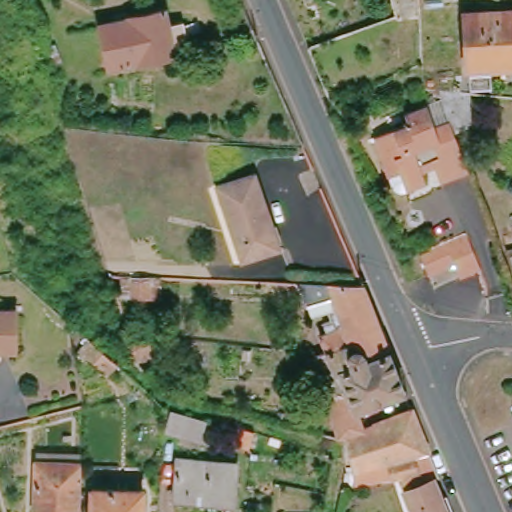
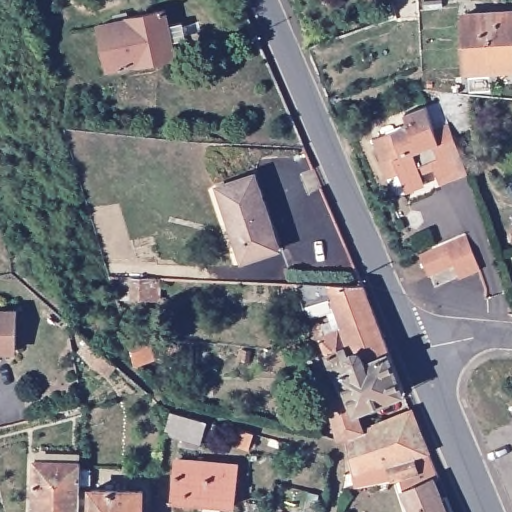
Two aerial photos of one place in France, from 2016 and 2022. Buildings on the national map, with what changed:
unchanged [(136,67),(135,63),(109,70),(98,26),(125,21),(125,19),(163,11),(172,58),(136,67)]
unchanged [(467,72),(462,18),(512,12),(512,67),(467,72)]
unchanged [(400,185),(396,175),(384,180),(379,166),(369,140),(404,127),(401,117),(421,109),(430,131),(446,125),(435,94),(468,97),(468,127),(462,132),(452,142),(464,176),(437,187),(431,169),(418,175),(419,178),(423,185),(403,192),(400,185)]
unchanged [(276,249),(238,264),(211,189),(248,175),(276,249)]
unchanged [(460,237),(474,272),(454,280),(450,268),(424,278),(415,256),(460,237)]
unchanged [(131,299),(131,283),(148,283),(148,300),(131,299)]
unchanged [(329,362),(328,359),(323,344),(342,337),(336,319),(325,291),(364,292),(384,342),(391,360),(405,397),(353,415),(332,361),(329,362)]
unchanged [(10,356),(0,356),(0,312),(10,312),(10,356)]
unchanged [(126,337),(136,335),(139,345),(146,344),(151,359),(134,364),(126,337)]
unchanged [(115,365),(100,376),(75,353),(93,341),(115,365)]
unchanged [(328,407),(315,367),(329,362),(332,361),(353,415),(361,435),(341,443),(328,407)]
unchanged [(392,488),(388,469),(353,478),(341,443),(361,435),(412,414),(430,460),(414,463),(419,483),(392,488)]
unchanged [(161,439),(166,418),(201,428),(196,449),(161,439)]
unchanged [(75,466),(75,473),(74,512),(27,512),(29,465),(75,466)]
unchanged [(168,504),(171,467),(231,472),(230,510),(168,504)]
unchanged [(430,485),(442,512),(409,512),(402,496),(430,485)]
unchanged [(140,492),(138,512),(89,512),(90,491),(140,492)]

